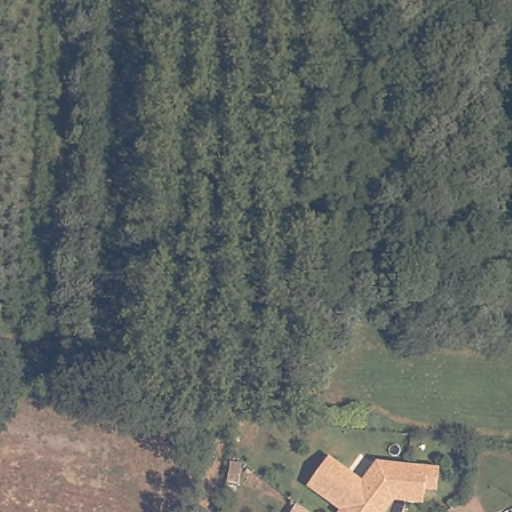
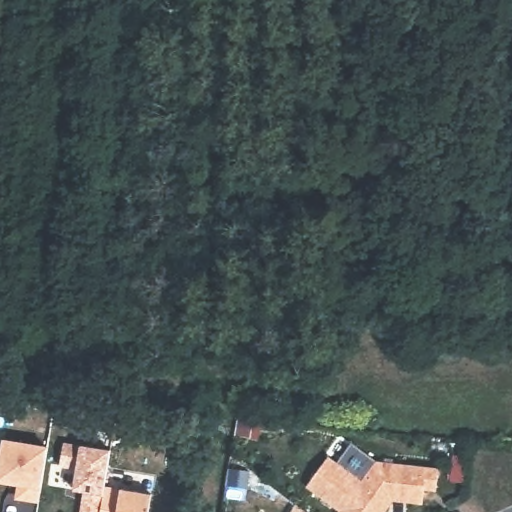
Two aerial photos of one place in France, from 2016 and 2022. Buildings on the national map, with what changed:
new [(9,440),(52,447),(43,500),(21,497),(24,483),(2,479),(9,440)]
new [(115,450),(109,486),(105,512),(85,512),(88,491),(77,489),(80,469),(64,466),(68,442),(115,450)]
unchanged [(342,512),(342,511),(310,486),(332,455),(365,479),(379,462),(440,468),(440,486),(439,491),(425,490),(425,499),(420,502),(408,501),(393,501),(385,512),(342,512)]
new [(156,493),(153,512),(105,512),(109,486),(156,493)]
unchanged [(308,512),(293,512),(297,504),(308,512)]

